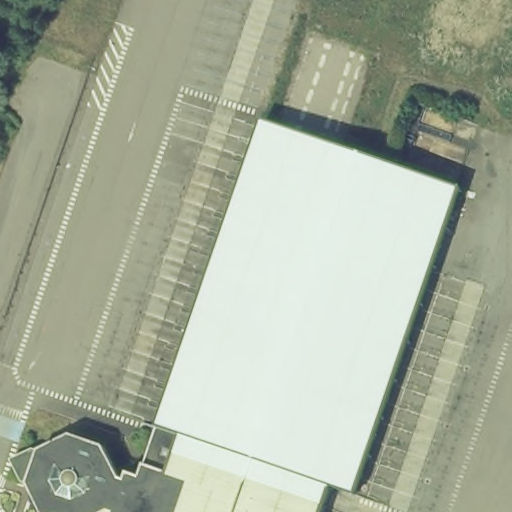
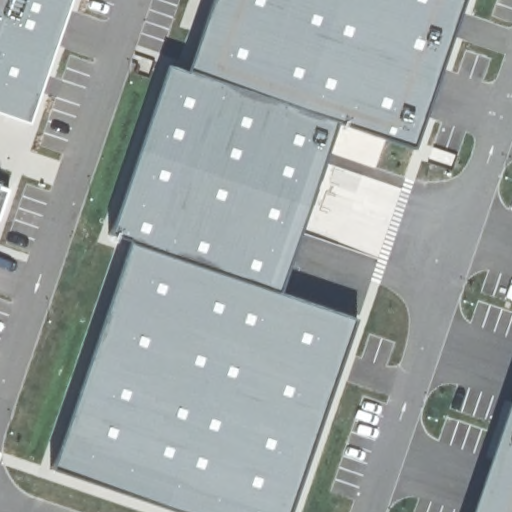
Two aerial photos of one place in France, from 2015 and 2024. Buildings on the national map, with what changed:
new [(30,125),(0,114),(0,0),(73,0),(30,125)]
new [(122,240),(120,240),(115,238),(109,235),(166,65),(186,72),(210,0),(466,0),(460,19),(460,20),(455,34),(434,96),(429,110),(428,111),(415,151),(338,124),(334,137),(319,179),(315,190),(311,204),(280,293),(357,319),(291,512),(174,512),(50,470),(128,242),(122,240)]
demolished [(108,512),(41,512),(30,488),(17,459),(45,451),(74,436),(110,447),(125,481),(130,482),(134,473),(147,477),(267,125),(465,190),(360,498),(332,489),(323,512),(114,512),(110,511),(108,512)]
new [(0,217),(0,187),(9,191),(0,217)]
new [(471,512),(512,391),(512,512),(471,512)]

